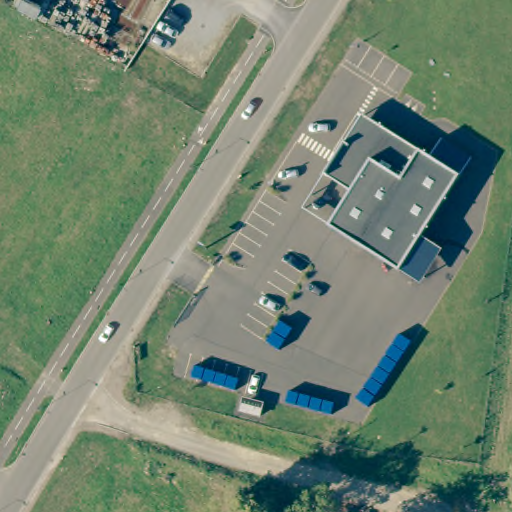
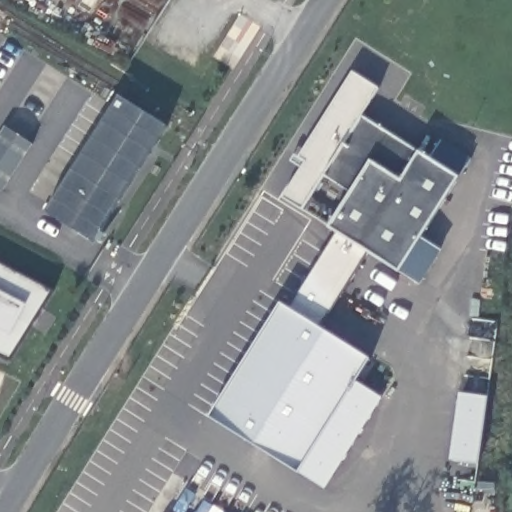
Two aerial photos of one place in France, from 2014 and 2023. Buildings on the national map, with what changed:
new [(304,161),(299,157),(353,71),(379,89),(363,115),(324,174),(301,211),(282,199),(304,161)]
new [(73,170),(111,110),(159,140),(119,201),(93,242),(46,212),(73,170)]
unchanged [(399,273),(326,226),(349,190),(324,174),(363,115),(422,153),(429,157),(441,138),(470,156),(458,178),(423,236),(441,251),(419,285),(399,273)]
new [(34,145),(4,193),(0,190),(0,133),(5,126),(34,145)]
new [(280,303),(289,308),(335,232),(368,253),(320,327),(369,360),(356,380),(384,399),(326,491),(299,474),(209,417),(280,303)]
new [(11,359),(0,353),(0,265),(51,293),(11,359)]
new [(461,392),(487,395),(479,464),(451,462),(461,392)]

